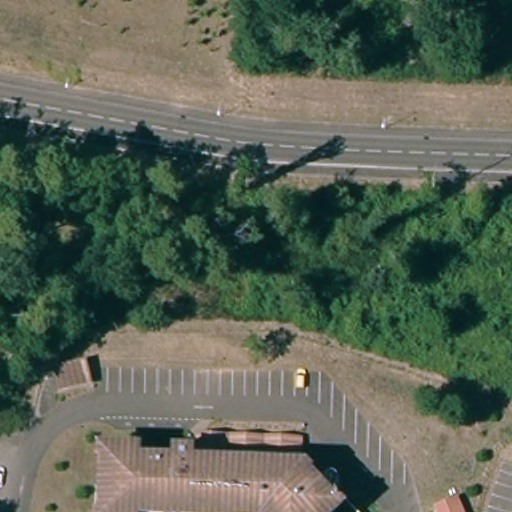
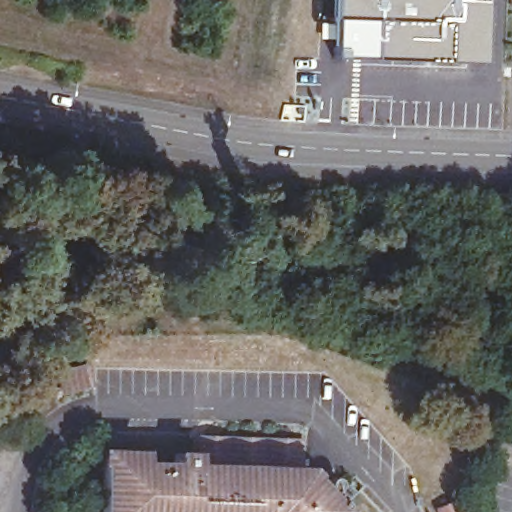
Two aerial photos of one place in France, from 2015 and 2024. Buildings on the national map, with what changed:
new [(488,0),(486,65),(437,64),(333,59),(333,38),(335,0),(488,0)]
unchanged [(88,360),(92,378),(64,385),(60,368),(88,360)]
unchanged [(485,411),(478,437),(427,423),(434,395),(485,411)]
unchanged [(100,458),(172,460),(173,445),(190,446),(200,446),(199,428),(299,433),(298,463),(337,503),(348,495),(363,512),(98,512),(100,458)]
unchanged [(454,499),(460,512),(441,512),(438,505),(454,499)]

